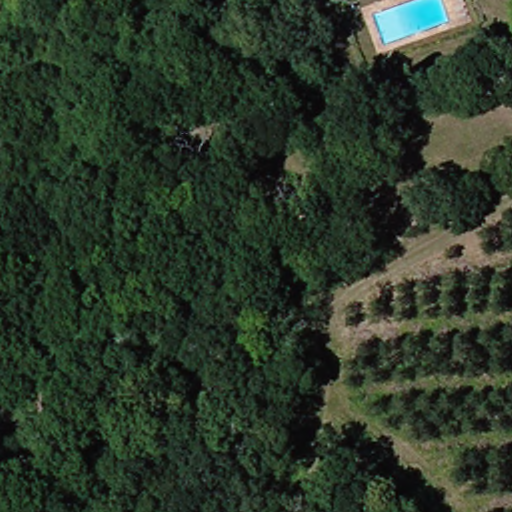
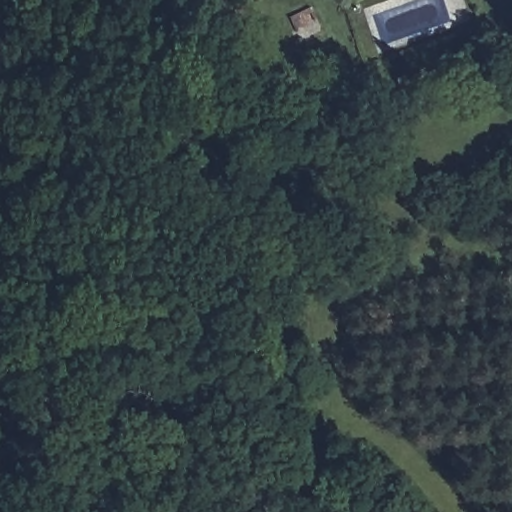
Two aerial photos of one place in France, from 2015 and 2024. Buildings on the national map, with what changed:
unchanged [(436,78),(428,81),(421,64),(429,60),(436,78)]

